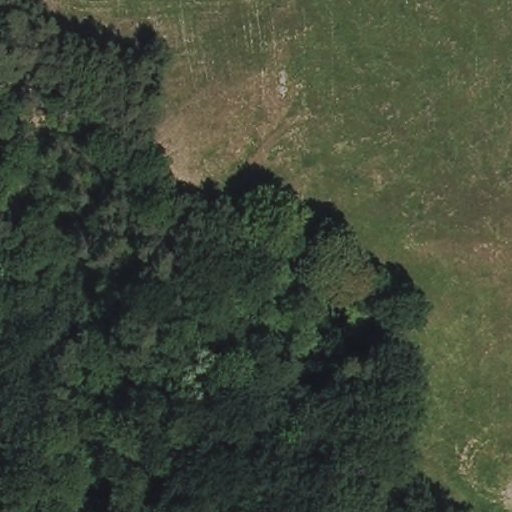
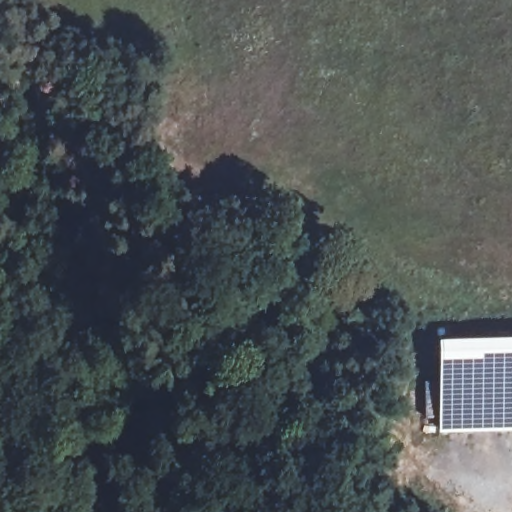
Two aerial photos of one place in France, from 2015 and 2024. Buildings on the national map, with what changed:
new [(435,338),(512,336),(512,430),(438,431),(435,338)]

